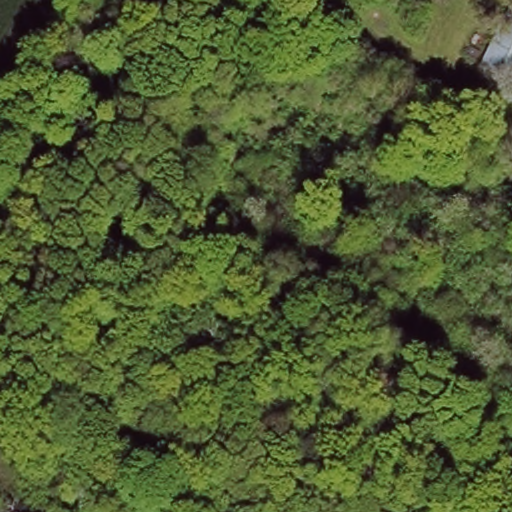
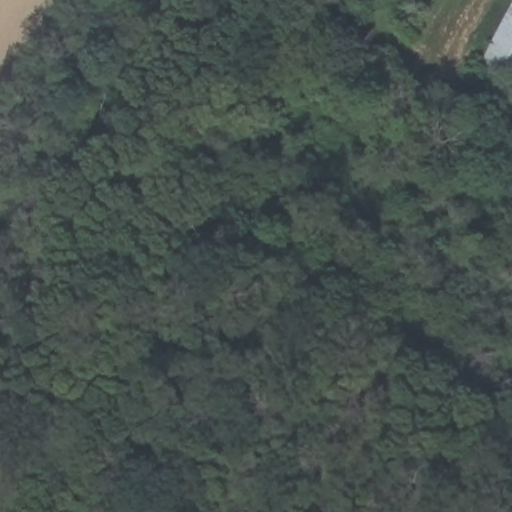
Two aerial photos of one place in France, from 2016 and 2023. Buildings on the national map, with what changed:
unchanged [(476,74),(494,37),(481,29),(497,0),(510,0),(512,1),(512,92),(476,74)]

